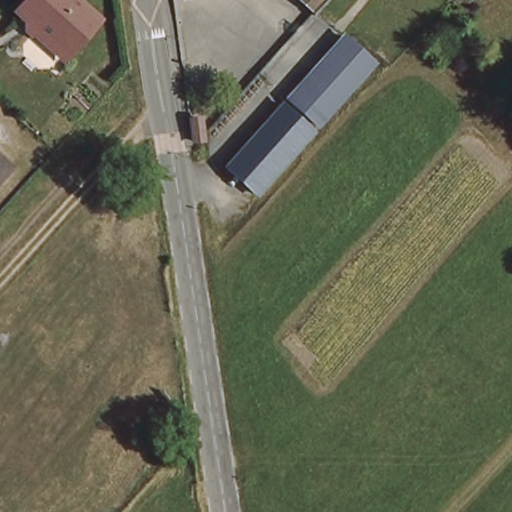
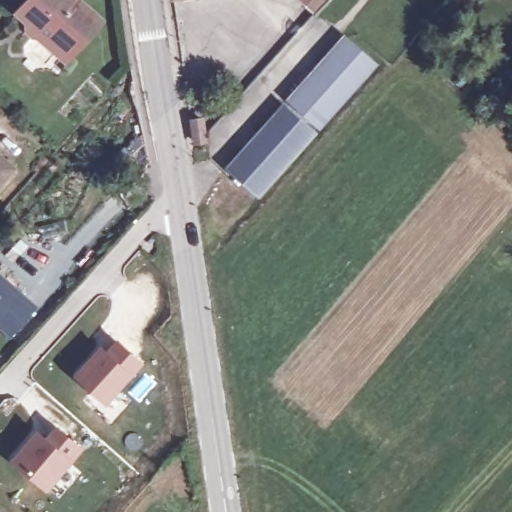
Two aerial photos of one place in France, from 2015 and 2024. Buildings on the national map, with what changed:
unchanged [(79,0),(97,16),(67,51),(57,43),(48,44),(40,35),(33,36),(27,30),(27,23),(30,19),(20,8),(27,0),(79,0)]
new [(110,81),(117,64),(111,0),(117,0),(120,1),(127,68),(120,85),(110,81)]
unchanged [(295,0),(327,0),(312,16),(295,0)]
unchanged [(379,66),(258,194),(225,164),(341,35),(379,66)]
unchanged [(200,118),(202,140),(192,141),(190,119),(200,118)]
unchanged [(0,187),(0,158),(15,170),(0,187)]
new [(17,302),(30,313),(10,334),(0,326),(0,273),(23,294),(17,302)]
new [(100,344),(105,349),(116,338),(143,363),(105,404),(71,374),(100,344)]
new [(84,447),(72,459),(46,489),(8,458),(36,427),(43,435),(55,423),(84,447)]

